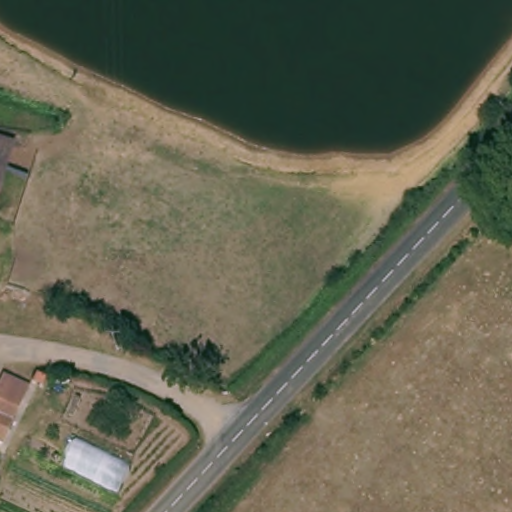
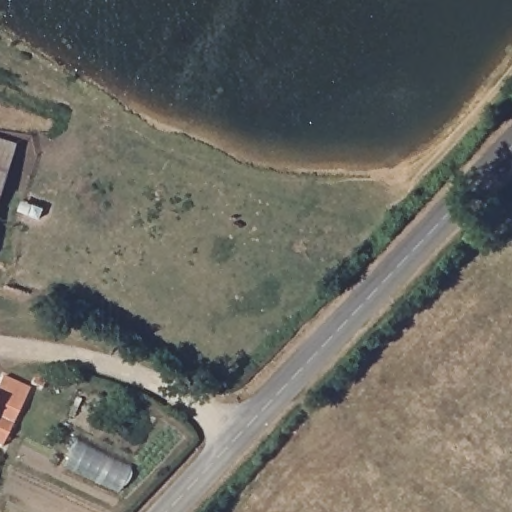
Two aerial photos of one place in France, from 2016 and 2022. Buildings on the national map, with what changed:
unchanged [(0,187),(0,138),(14,143),(0,187)]
unchanged [(34,383),(2,447),(0,446),(0,388),(9,372),(34,383)]

